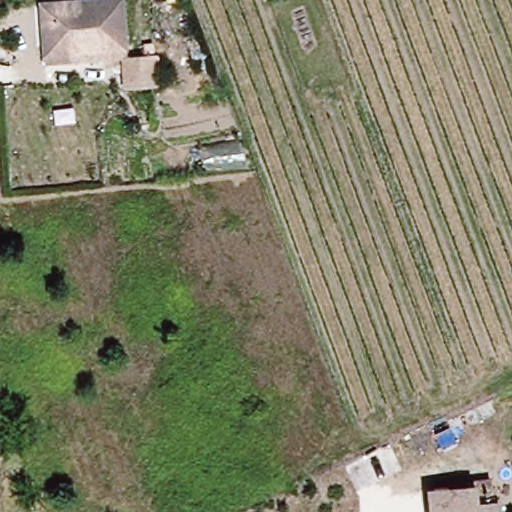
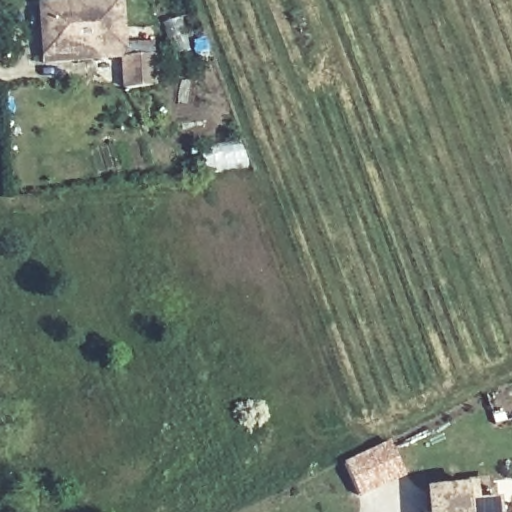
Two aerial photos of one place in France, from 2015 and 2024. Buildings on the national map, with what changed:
unchanged [(120,0),(123,51),(53,54),(50,4),(120,0)]
unchanged [(50,4),(53,54),(123,51),(123,59),(43,64),(41,3),(50,4)]
demolished [(483,395),(512,383),(512,410),(492,420),(483,395)]
new [(391,438),(407,474),(358,498),(341,462),(391,438)]
unchanged [(429,483),(489,477),(490,489),(495,488),(498,512),(430,512),(429,483)]

